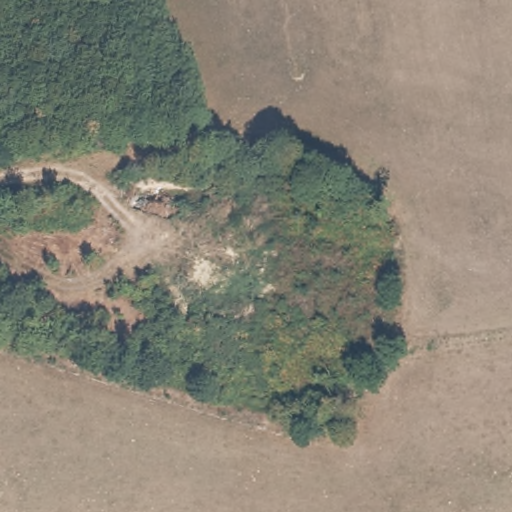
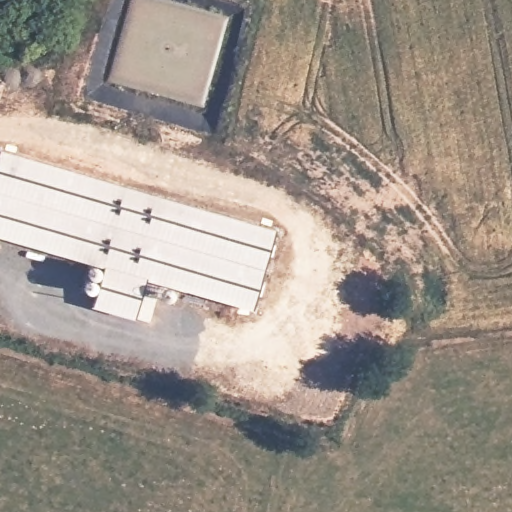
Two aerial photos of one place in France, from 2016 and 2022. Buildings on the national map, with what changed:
new [(252,311),(145,280),(135,320),(93,308),(104,267),(0,238),(0,150),(275,230),(252,311)]

